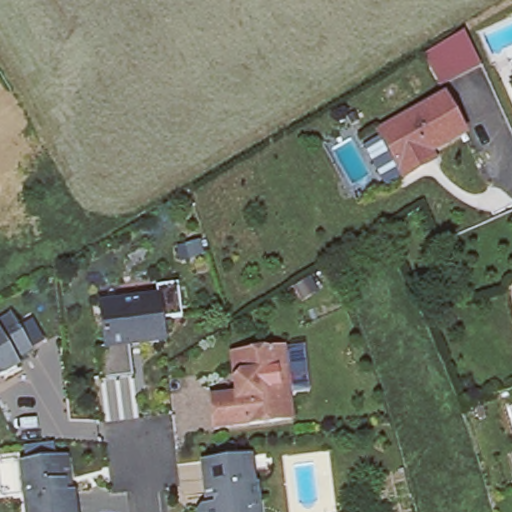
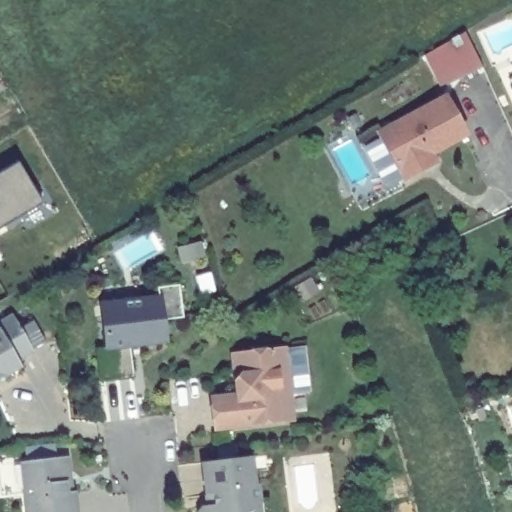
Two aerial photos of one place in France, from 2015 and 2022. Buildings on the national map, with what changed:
unchanged [(482,68),(442,89),(425,57),(466,34),(482,68)]
unchanged [(417,170),(395,182),(370,136),(437,100),(457,137),(422,156),(427,165),(417,170)]
new [(42,202),(0,227),(0,173),(17,163),(42,202)]
unchanged [(181,315),(160,318),(163,340),(127,345),(131,374),(100,378),(92,327),(102,326),(100,310),(122,307),(120,299),(156,293),(155,286),(176,283),(181,315)]
unchanged [(17,354),(22,361),(0,373),(0,317),(14,310),(33,345),(17,354)]
unchanged [(282,415),(216,425),(212,392),(237,388),(235,375),(232,348),(238,347),(284,342),(291,390),(295,413),(282,415)]
unchanged [(30,512),(22,455),(63,451),(68,457),(70,471),(71,487),(75,486),(77,512),(30,512)]
unchanged [(202,499),(204,499),(204,498),(203,488),(200,457),(247,451),(252,480),(255,480),(257,497),(258,512),(197,512),(196,506),(202,499)]

